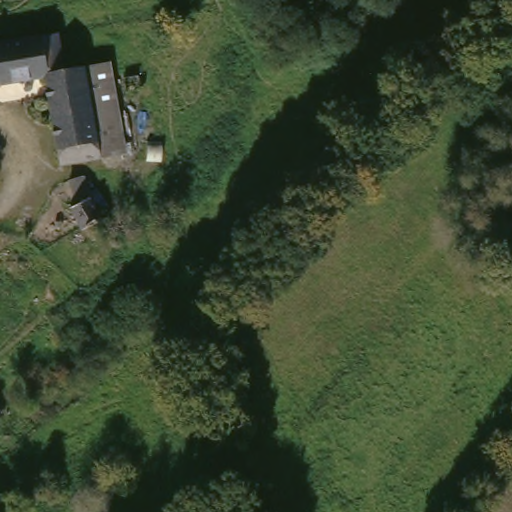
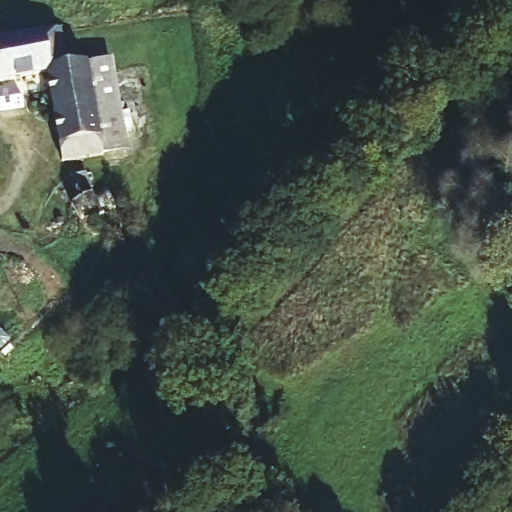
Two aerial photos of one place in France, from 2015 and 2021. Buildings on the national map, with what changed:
unchanged [(0,78),(0,35),(57,26),(62,60),(82,57),(84,65),(98,154),(83,156),(62,159),(45,71),(0,78)]
unchanged [(110,61),(126,151),(98,154),(84,65),(110,61)]
unchanged [(96,240),(111,232),(120,251),(103,257),(96,240)]

